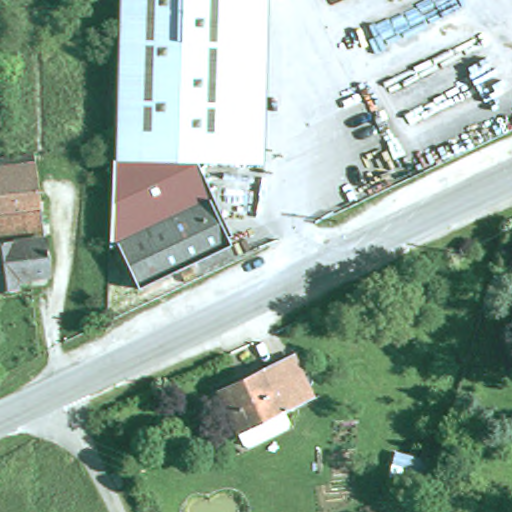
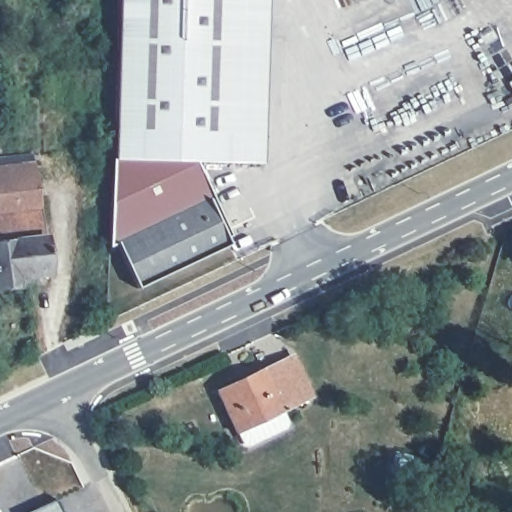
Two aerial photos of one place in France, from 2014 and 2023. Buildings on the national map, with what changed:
unchanged [(247,0),(243,165),(198,165),(113,162),(114,153),(119,0),(247,0)]
unchanged [(243,165),(247,0),(269,0),(264,165),(243,165)]
unchanged [(198,165),(215,199),(208,202),(231,249),(143,292),(118,249),(110,252),(113,162),(198,165)]
unchanged [(33,295),(0,299),(0,169),(33,165),(35,180),(48,285),(32,286),(33,295)]
unchanged [(289,421),(288,428),(248,445),(243,442),(239,432),(236,433),(218,391),(296,357),(314,399),(286,411),(289,421)]
new [(57,500),(63,512),(32,512),(57,500)]

